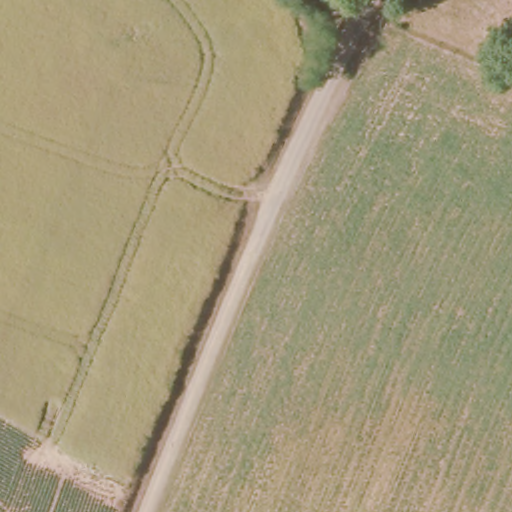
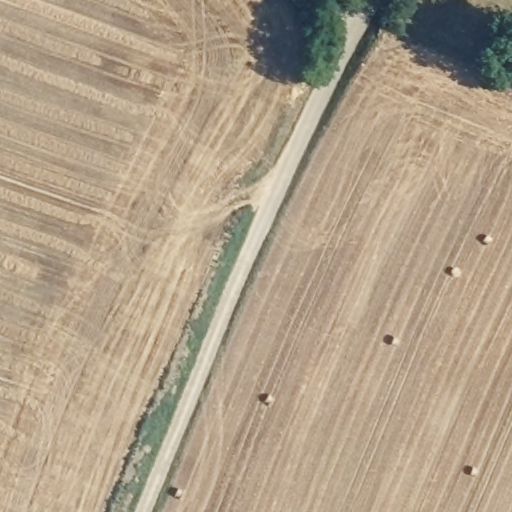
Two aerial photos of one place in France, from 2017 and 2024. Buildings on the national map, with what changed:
[]

